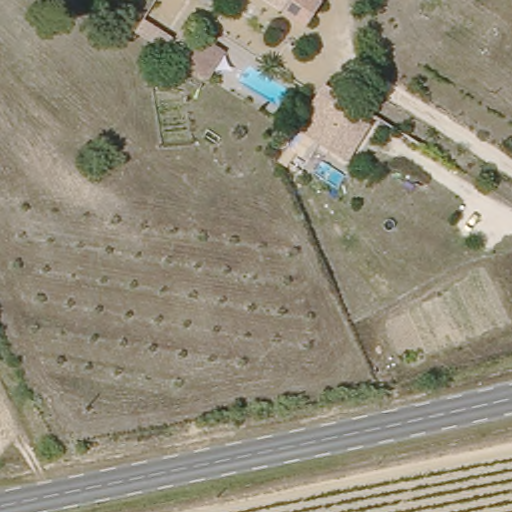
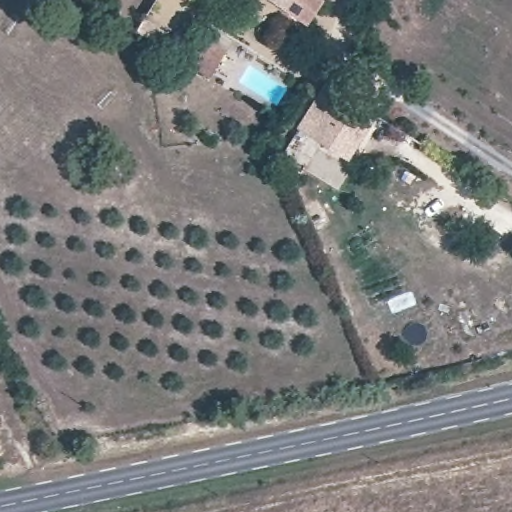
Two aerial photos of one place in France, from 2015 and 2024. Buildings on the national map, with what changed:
unchanged [(186,2),(184,0),(188,0),(186,2)]
unchanged [(327,11),(317,27),(310,21),(307,26),(266,0),(310,0),(327,11)]
unchanged [(140,26),(157,37),(151,45),(136,34),(140,26)]
unchanged [(173,48),(189,57),(184,65),(168,56),(173,48)]
unchanged [(350,163),(303,132),(325,100),(373,128),(350,163)]

